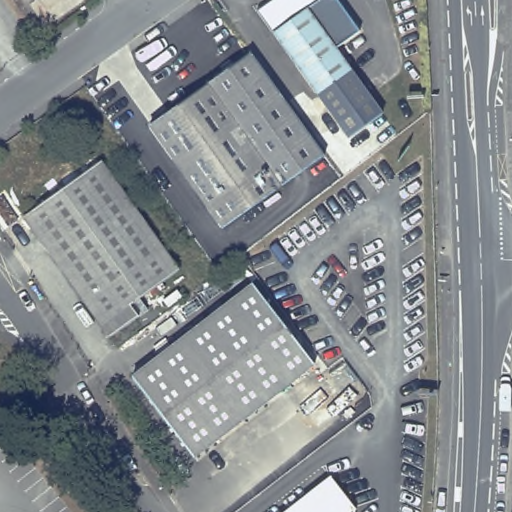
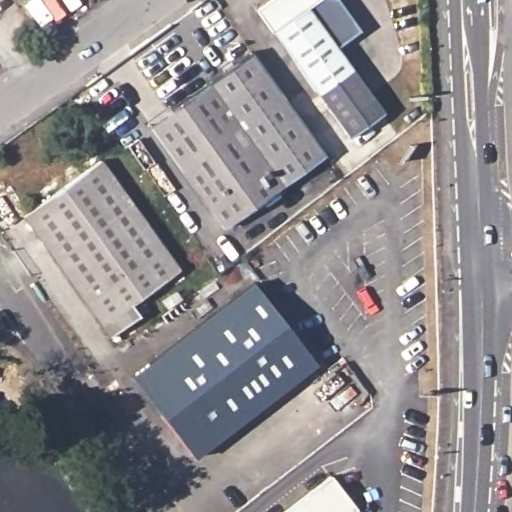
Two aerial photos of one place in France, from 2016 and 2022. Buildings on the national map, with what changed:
unchanged [(321,4),(323,2),(336,6),(360,39),(335,56),(350,77),(319,100),(259,16),(281,0),(318,0),(321,4)]
unchanged [(324,153),(278,188),(222,228),(198,195),(149,125),(186,100),(250,52),(324,153)]
unchanged [(350,77),(379,117),(348,140),(319,100),(350,77)]
unchanged [(100,161),(179,270),(130,305),(138,316),(109,335),(25,215),(100,161)]
unchanged [(254,284),(314,363),(194,455),(133,377),(254,284)]
unchanged [(358,510),(355,512),(287,512),(333,477),(358,510)]

